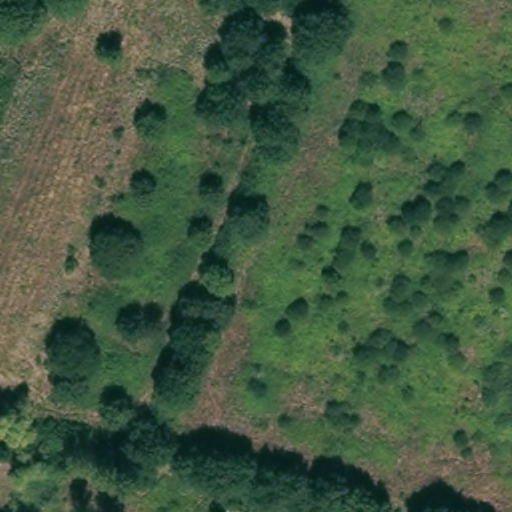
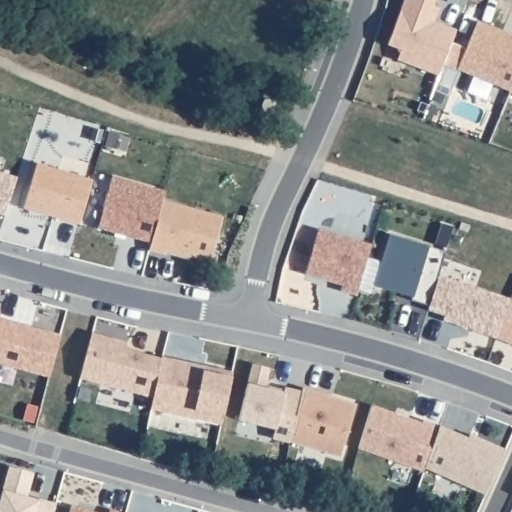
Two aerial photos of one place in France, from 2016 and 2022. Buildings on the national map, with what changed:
new [(433,3),(439,6),(434,19),(440,21),(456,27),(439,73),(397,57),(401,47),(387,42),(403,0),(434,0),(433,3)]
new [(512,33),(512,84),(510,88),(457,66),(477,18),(508,31),(512,33)]
new [(37,161),(92,178),(80,222),(24,206),(37,161)]
new [(17,175),(5,213),(0,212),(0,170),(17,175)]
new [(112,174),(165,189),(163,198),(151,240),(98,226),(112,174)]
new [(165,251),(165,252),(150,248),(151,240),(163,198),(223,214),(210,260),(190,255),(189,257),(165,251)]
new [(318,227),(371,242),(356,293),(340,288),(342,282),(305,272),(318,227)]
new [(390,232),(446,249),(439,272),(430,303),(411,298),(412,294),(375,283),(390,232)]
new [(430,303),(439,272),(510,296),(496,335),(470,326),(470,323),(464,324),(443,317),(445,312),(428,307),(430,303)]
new [(512,297),(512,341),(496,335),(510,296),(512,297)]
new [(61,333),(50,376),(0,363),(0,317),(61,333)]
new [(92,331),(127,340),(125,347),(162,356),(154,395),(80,377),(92,331)]
new [(162,356),(162,355),(187,360),(213,365),(233,370),(222,422),(151,407),(154,395),(162,356)]
new [(253,362),(270,366),(265,386),(284,390),(285,385),(302,390),(290,439),(290,441),(273,437),(275,427),(239,418),(253,362)]
new [(302,390),(303,386),(356,402),(341,455),(290,439),(302,390)]
new [(397,415),(403,414),(423,421),(425,417),(440,423),(425,465),(424,468),(364,448),(359,446),(372,403),(379,405),(396,411),(397,415)]
new [(468,436),(470,431),(477,435),(506,448),(486,493),(425,465),(440,423),(468,436)]
new [(27,497),(27,495),(39,499),(56,503),(54,512),(0,512),(0,501),(10,466),(34,473),(27,497)]
new [(100,512),(70,512),(71,504),(100,512)]
new [(118,512),(110,512),(110,509),(118,512)]

